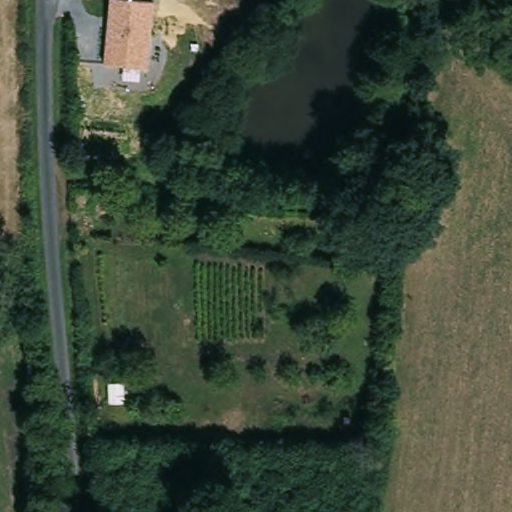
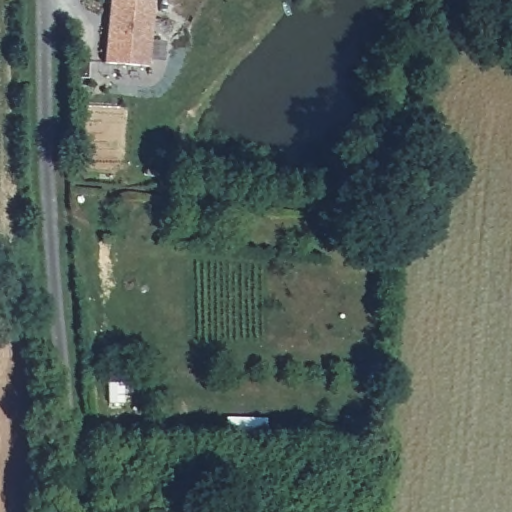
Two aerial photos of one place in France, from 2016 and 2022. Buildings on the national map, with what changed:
unchanged [(154,1),(147,68),(103,62),(109,0),(142,0),(154,1)]

